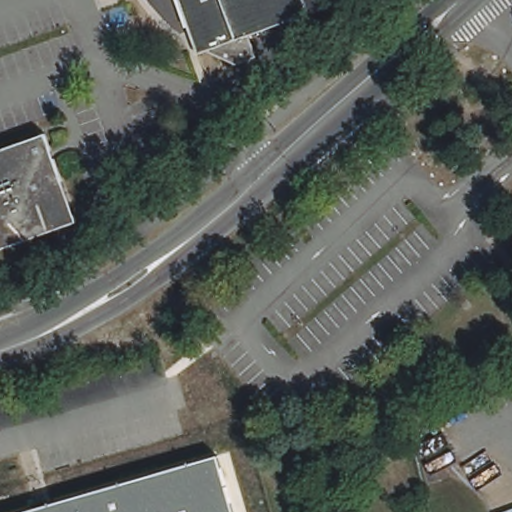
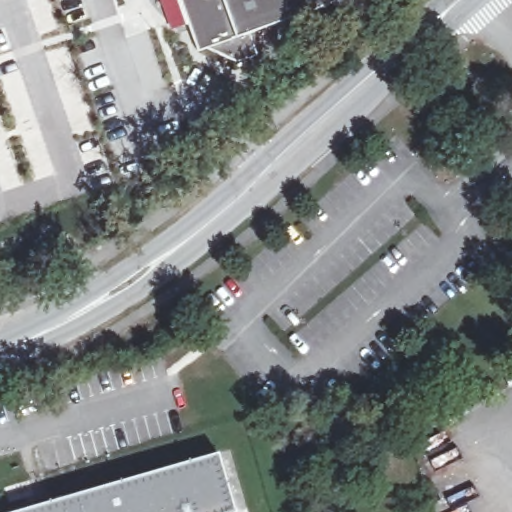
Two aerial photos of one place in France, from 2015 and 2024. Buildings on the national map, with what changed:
unchanged [(198,42),(183,0),(337,0),(337,1),(254,32),(262,54),(242,61),(211,47),(202,51),(198,42)]
demolished [(79,212),(0,251),(0,154),(51,135),(79,212)]
unchanged [(26,512),(37,509),(34,501),(50,496),(52,504),(222,455),(238,512),(26,512)]

